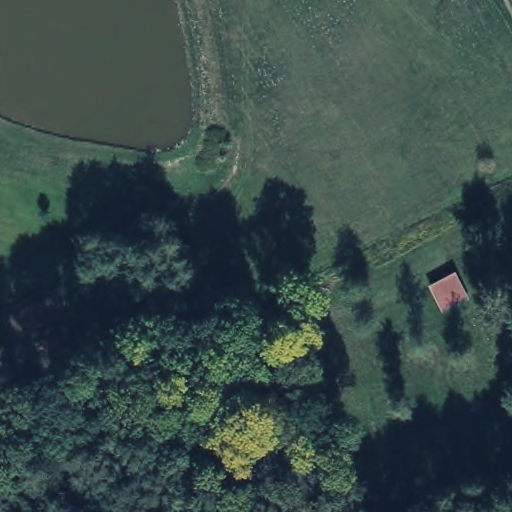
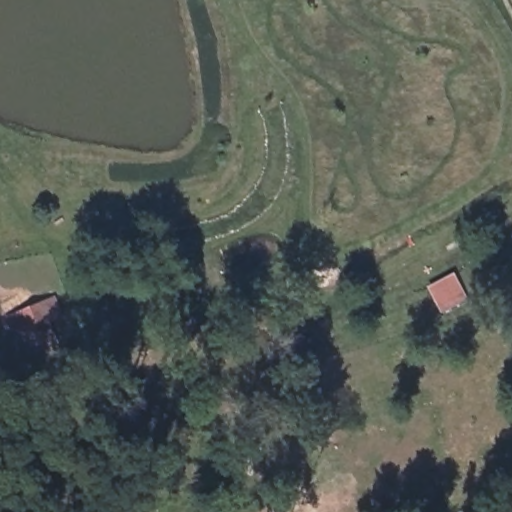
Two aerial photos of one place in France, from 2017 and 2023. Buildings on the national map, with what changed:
unchanged [(61,316),(21,332),(12,310),(55,293),(61,316)]

